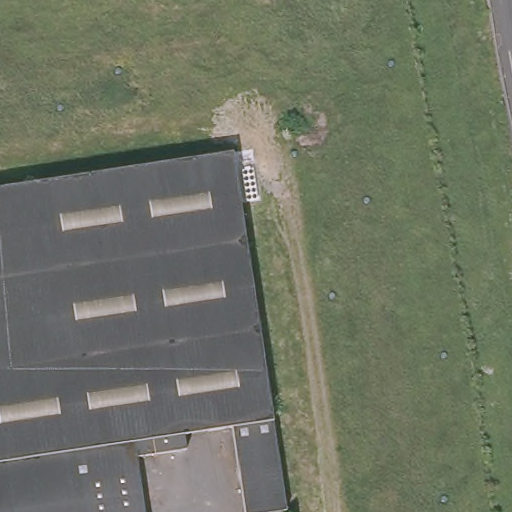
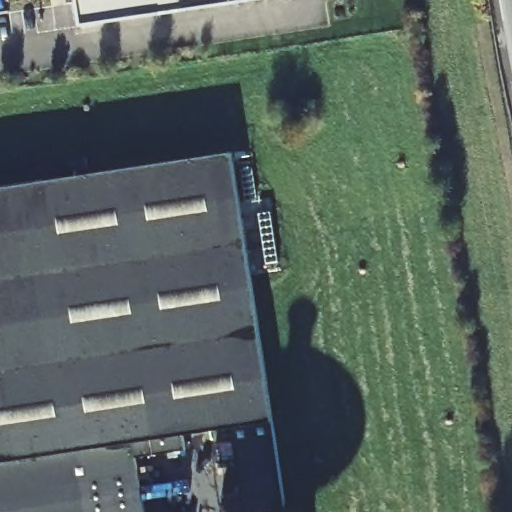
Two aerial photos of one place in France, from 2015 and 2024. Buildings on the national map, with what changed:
new [(78,0),(233,0),(82,22),(78,0)]
unchanged [(285,512),(245,512),(232,431),(183,437),(185,452),(136,460),(144,512),(0,512),(0,188),(229,151),(285,512)]

